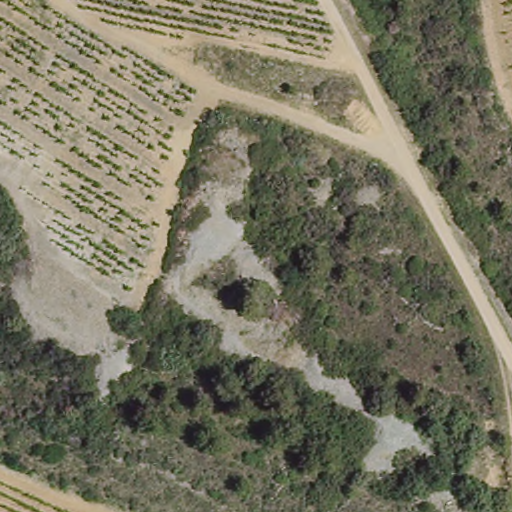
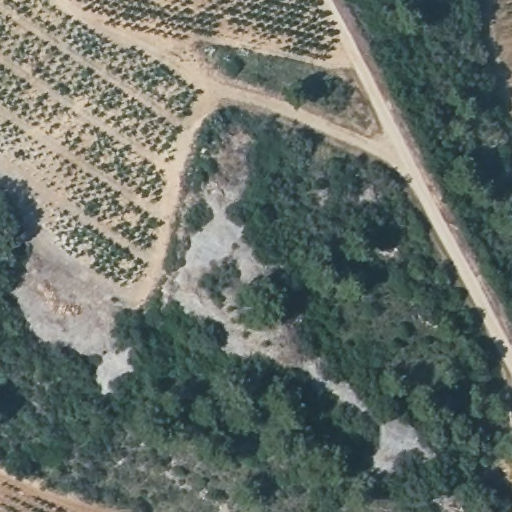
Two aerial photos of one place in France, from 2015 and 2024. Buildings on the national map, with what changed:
[]

